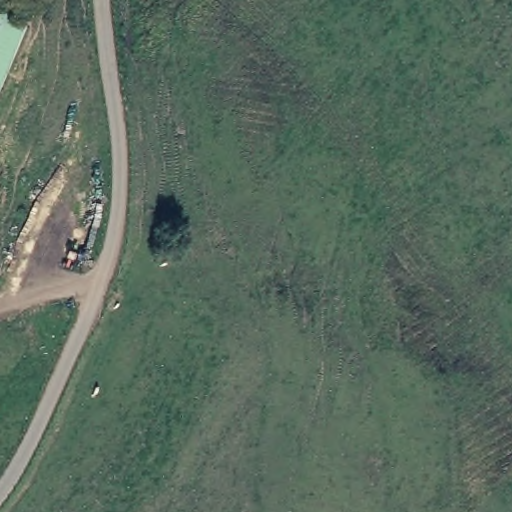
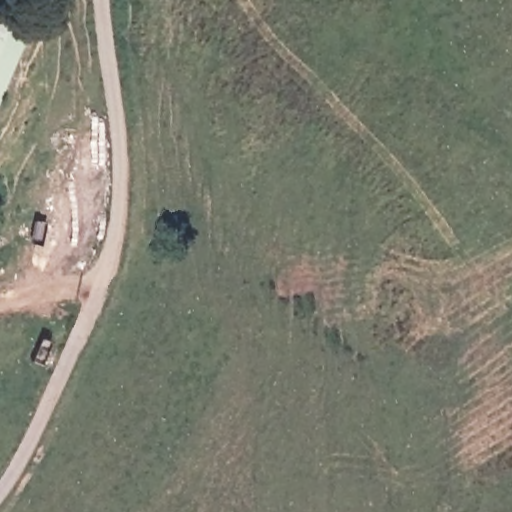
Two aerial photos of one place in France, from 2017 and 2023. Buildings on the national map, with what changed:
unchanged [(0,66),(0,8),(21,17),(0,66)]

